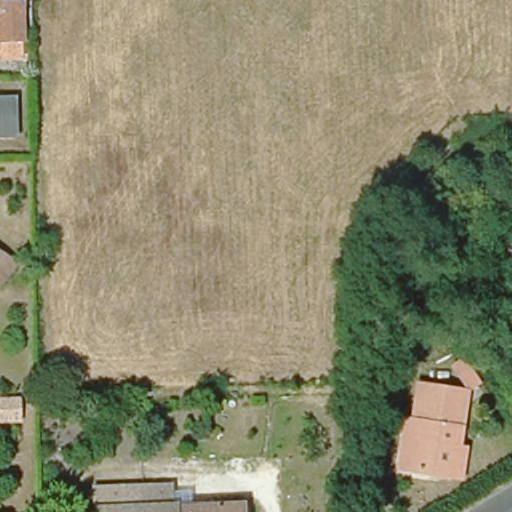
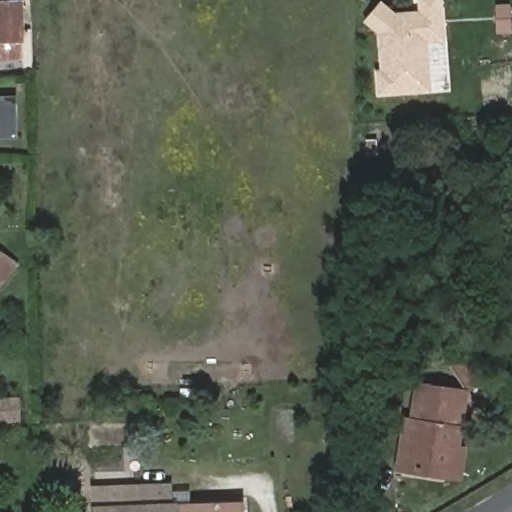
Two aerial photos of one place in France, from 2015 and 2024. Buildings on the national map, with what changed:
unchanged [(20,39),(21,55),(0,56),(0,0),(19,0),(20,39)]
new [(428,42),(432,91),(378,95),(376,71),(381,70),(377,32),(364,21),(381,1),(395,11),(419,10),(418,0),(443,0),(446,41),(428,42)]
unchanged [(14,130),(0,131),(0,93),(13,93),(14,130)]
unchanged [(19,255),(2,278),(0,277),(0,241),(19,255)]
unchanged [(460,478),(446,476),(398,470),(401,441),(404,417),(411,418),(416,383),(465,391),(457,445),(464,445),(460,478)]
unchanged [(0,423),(0,398),(19,397),(21,422),(0,423)]
unchanged [(168,506),(239,505),(239,512),(91,512),(90,488),(133,487),(167,487),(168,506)]

